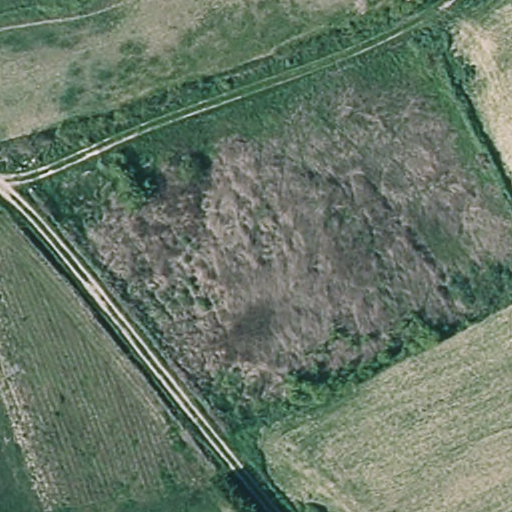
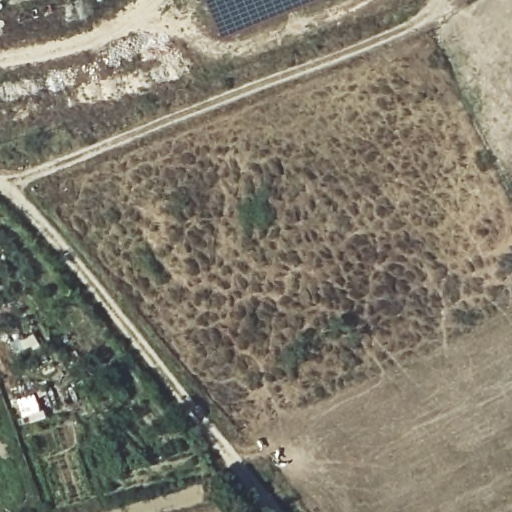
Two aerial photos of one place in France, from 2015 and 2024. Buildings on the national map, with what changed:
new [(207,0),(307,0),(221,34),(207,0)]

